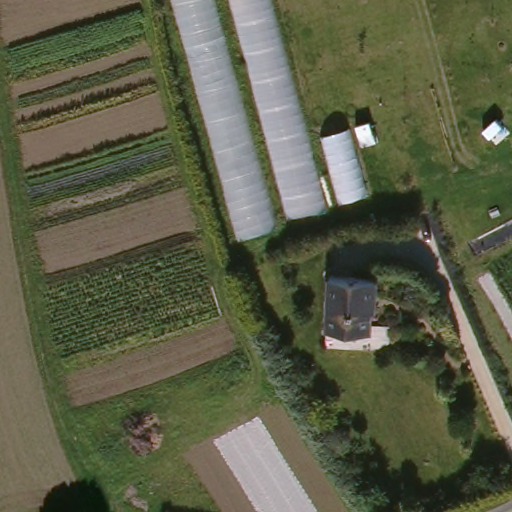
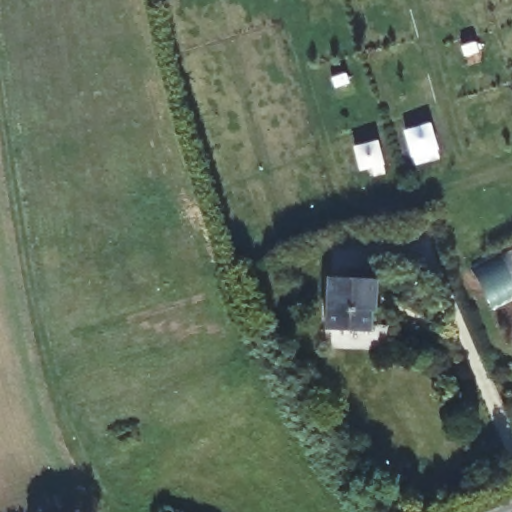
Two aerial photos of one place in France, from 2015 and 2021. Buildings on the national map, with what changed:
demolished [(169,0),(274,0),(328,209),(235,244),(169,0)]
unchanged [(331,280),(380,284),(378,332),(350,330),(350,328),(329,327),(331,280)]

